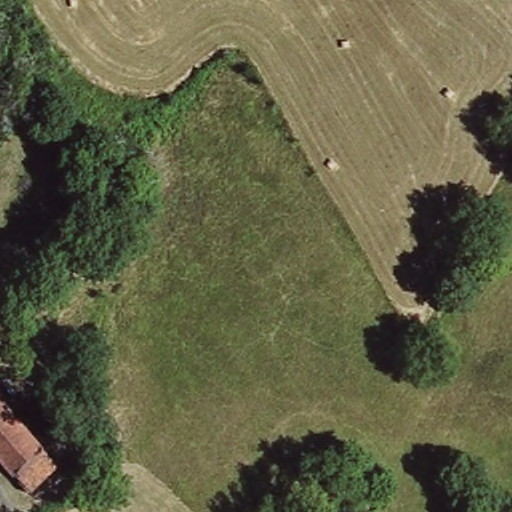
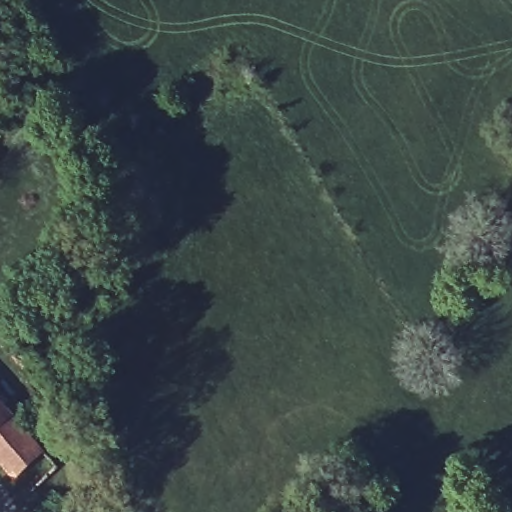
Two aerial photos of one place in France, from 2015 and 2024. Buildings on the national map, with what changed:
unchanged [(30,383),(42,394),(25,410),(14,400),(30,383)]
unchanged [(0,418),(0,395),(12,408),(0,418)]
unchanged [(60,465),(30,491),(0,456),(0,418),(12,408),(20,418),(60,465)]

